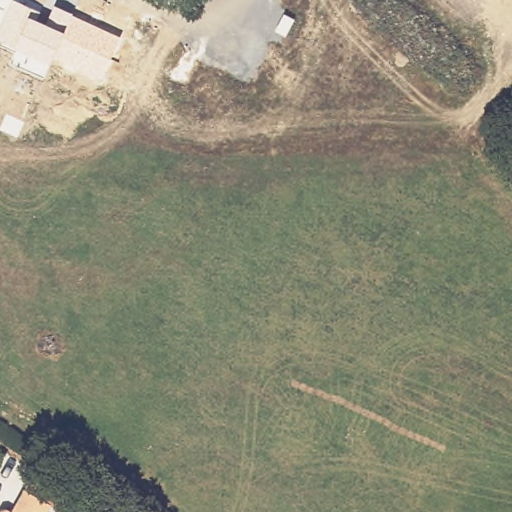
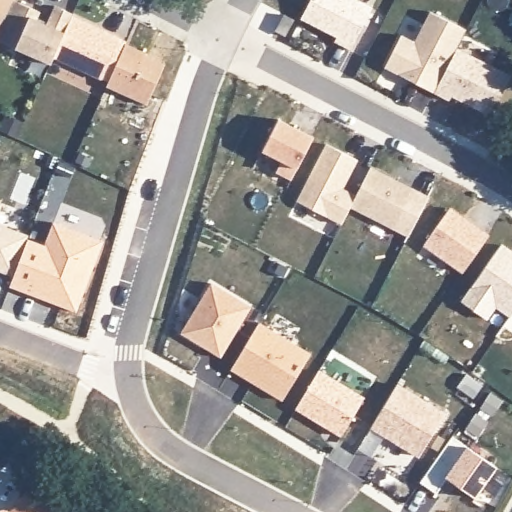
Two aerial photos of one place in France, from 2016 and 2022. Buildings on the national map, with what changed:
unchanged [(12,0),(11,1),(47,16),(54,5),(119,36),(101,78),(53,56),(49,64),(0,40),(0,0),(12,0)]
new [(350,49),(335,40),(337,37),(300,19),(309,0),(360,0),(373,7),(351,45),(350,49)]
new [(488,115),(450,96),(448,100),(433,92),(384,66),(401,34),(415,40),(430,10),(466,29),(457,47),(510,75),(488,115)]
new [(119,36),(129,40),(126,42),(149,52),(147,55),(165,64),(145,105),(106,86),(108,80),(101,78),(119,36)]
new [(312,136),(296,170),(291,182),(275,174),(281,161),(262,150),(278,117),(312,136)]
new [(344,187),(355,194),(370,165),(429,195),(408,237),(350,206),(340,224),(296,199),(325,142),(357,160),(344,187)]
new [(5,202),(0,214),(0,200),(5,202)]
new [(461,272),(422,242),(451,205),(490,233),(461,272)]
new [(11,275),(0,271),(0,223),(28,235),(11,275)]
new [(512,315),(510,317),(496,308),(486,321),(459,300),(502,241),(512,249),(512,315)]
new [(252,307),(220,357),(181,331),(211,281),(252,307)]
new [(310,352),(280,400),(230,369),(260,321),(310,352)]
new [(364,395),(339,435),(295,409),(319,367),(364,395)]
new [(445,411),(418,458),(370,428),(397,382),(445,411)]
new [(473,499),(446,477),(435,495),(418,480),(453,434),(466,443),(495,467),(473,499)]
unchanged [(47,500),(42,512),(0,512),(0,508),(1,507),(5,507),(9,509),(10,509),(21,486),(47,500)]

